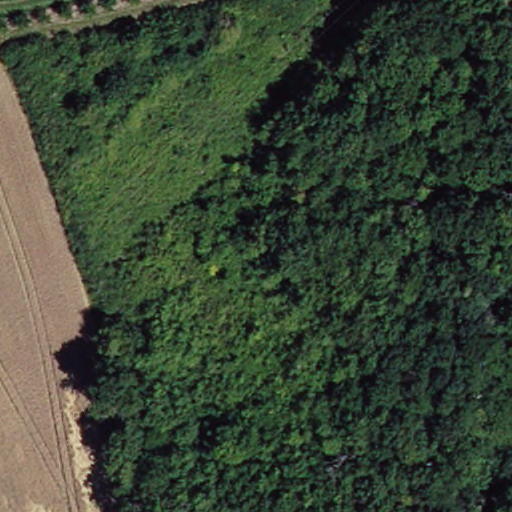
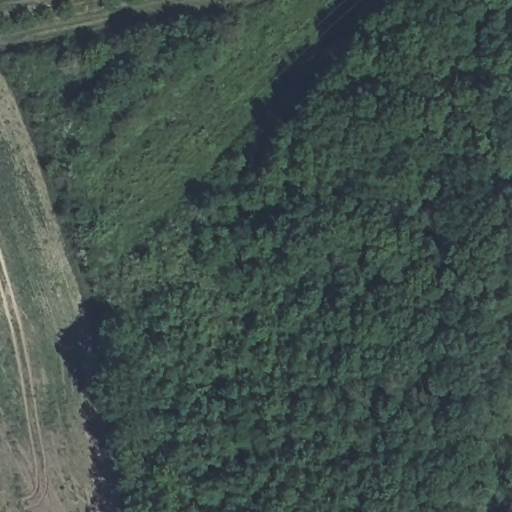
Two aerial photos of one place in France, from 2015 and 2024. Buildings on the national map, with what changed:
[]

